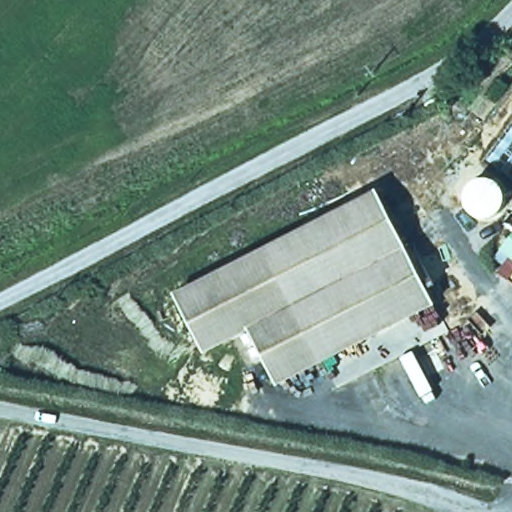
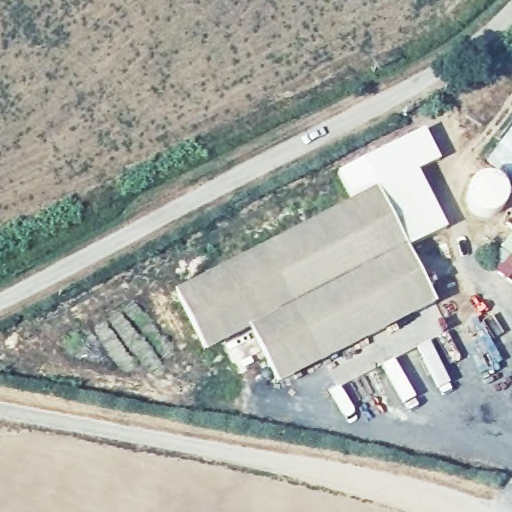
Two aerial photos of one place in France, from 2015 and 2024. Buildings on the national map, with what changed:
unchanged [(512,126),(512,186),(483,164),(512,126)]
new [(417,171),(445,229),(400,250),(372,195),(353,205),(337,173),(424,130),(439,160),(417,171)]
unchanged [(353,205),(372,195),(400,250),(430,307),(272,389),(243,333),(198,356),(169,300),(353,205)]
unchanged [(512,267),(495,254),(512,232),(512,267)]

